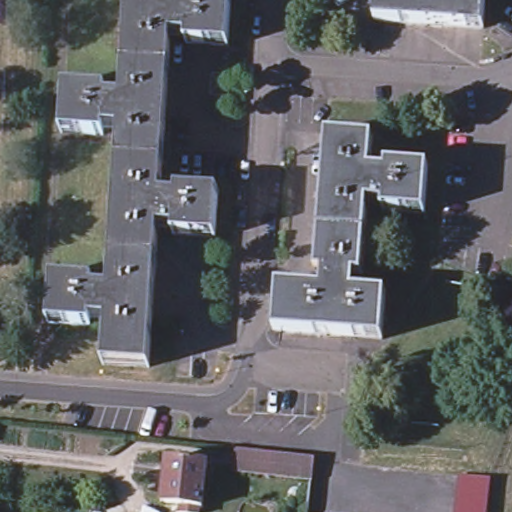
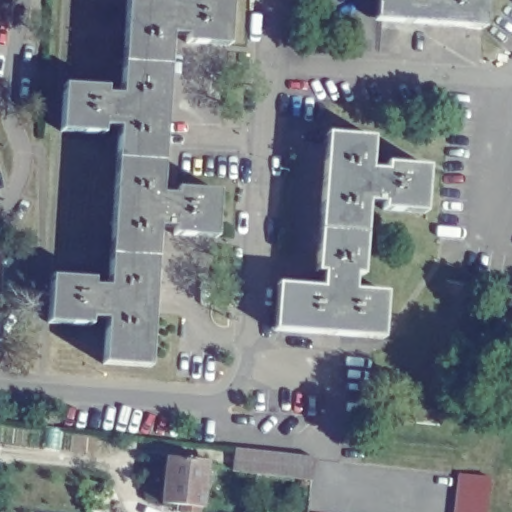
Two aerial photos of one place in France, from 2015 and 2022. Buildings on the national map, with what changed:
unchanged [(173,8),(190,10),(191,2),(231,6),(228,53),(188,49),(188,42),(171,40),(159,202),(176,204),(177,196),(217,199),(214,245),(174,241),(174,234),(157,233),(151,321),(147,373),(101,370),(104,324),(92,324),(92,332),(48,329),(51,282),(95,286),(94,294),(106,295),(118,134),(105,133),(104,140),(61,136),(65,90),(107,93),(107,100),(120,101),(127,0),(174,0),(173,8)]
unchanged [(479,37),(376,27),(378,0),(482,0),(479,37)]
unchanged [(371,137),(369,171),(384,173),(385,165),(430,169),(426,216),(381,213),(381,204),(366,204),(361,277),(352,277),(351,291),(384,294),(380,339),(334,336),(272,331),(276,284),(318,287),(319,275),(314,274),(325,134),(371,137)]
unchanged [(302,482),(261,479),(222,476),(224,455),(262,459),(303,463),(302,482)]
unchanged [(206,465),(201,510),(161,506),(166,461),(206,465)]
unchanged [(485,474),(483,512),(452,512),(455,471),(478,474),(485,474)]

